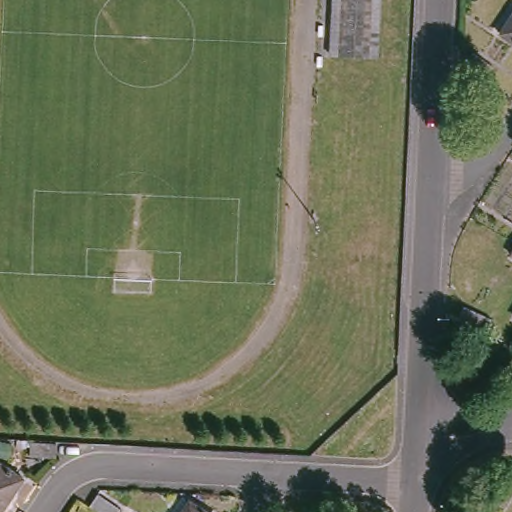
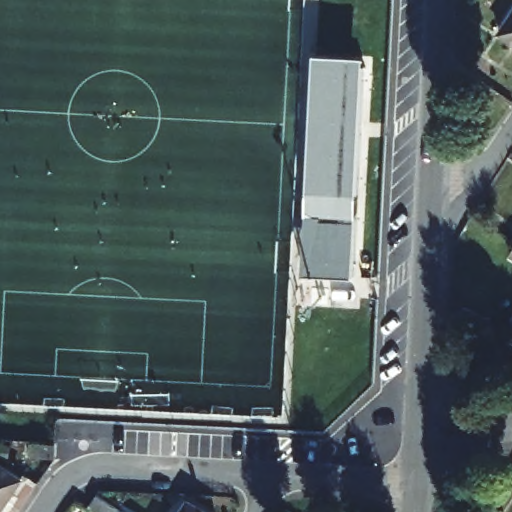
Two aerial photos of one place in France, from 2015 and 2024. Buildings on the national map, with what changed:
demolished [(328,0),(375,0),(373,44),(326,42),(328,0)]
unchanged [(512,37),(502,30),(512,15),(512,37)]
new [(355,275),(305,272),(315,53),(366,56),(355,275)]
unchanged [(498,69),(490,82),(475,73),(466,67),(475,53),(498,69)]
unchanged [(512,247),(512,257),(507,254),(512,247)]
unchanged [(53,443),(57,443),(54,457),(27,456),(28,442),(53,443)]
unchanged [(20,478),(0,509),(0,465),(20,478)]
unchanged [(116,512),(99,512),(88,505),(97,494),(119,508),(116,512)]
unchanged [(206,512),(180,512),(188,500),(206,512)]

